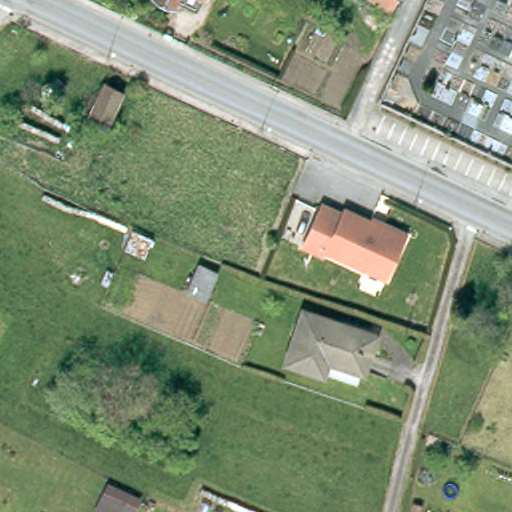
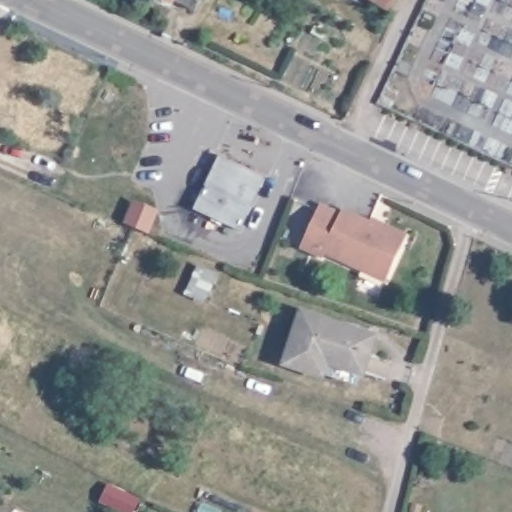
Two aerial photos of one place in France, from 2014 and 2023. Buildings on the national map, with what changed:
unchanged [(175,5),(165,0),(177,0),(175,5)]
unchanged [(198,6),(184,0),(200,0),(198,6)]
unchanged [(384,6),(374,0),(387,0),(384,6)]
new [(267,176),(242,228),(196,208),(221,155),(267,176)]
unchanged [(344,204),(346,199),(373,212),(375,208),(409,224),(407,228),(388,269),(328,241),(326,246),(304,235),(324,194),(344,204)]
unchanged [(202,260),(222,269),(210,294),(191,287),(202,260)]
unchanged [(361,370),(325,357),(318,374),(285,363),(302,313),(373,336),(361,370)]
new [(137,512),(95,512),(108,484),(142,501),(137,512)]

